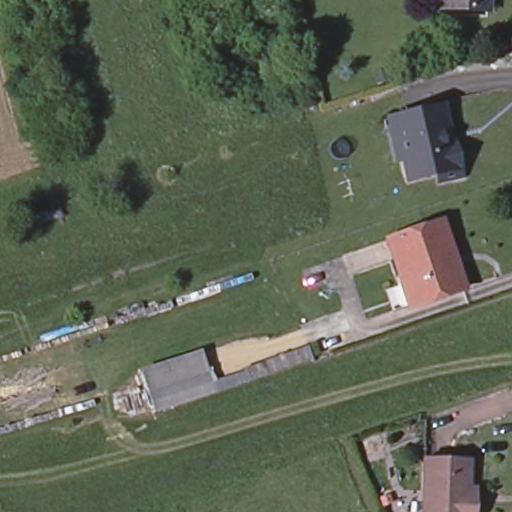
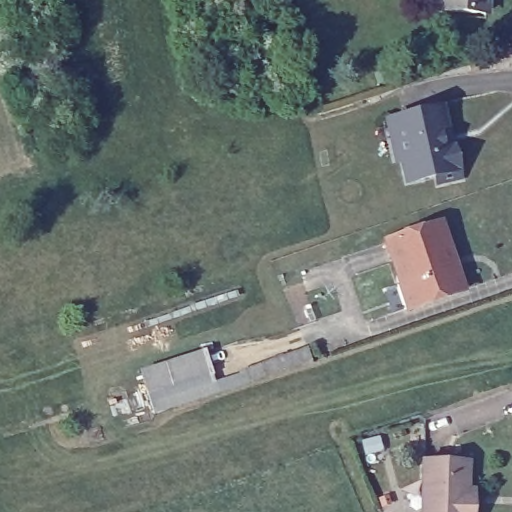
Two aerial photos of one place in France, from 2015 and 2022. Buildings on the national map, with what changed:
unchanged [(436,10),(437,0),(483,0),(482,13),(436,10)]
unchanged [(405,171),(398,145),(392,115),(439,104),(444,127),(441,128),(441,130),(445,146),(453,144),(455,154),(460,174),(437,179),(435,171),(406,179),(405,171)]
unchanged [(397,285),(386,252),(381,239),(435,220),(439,234),(450,269),(456,288),(414,302),(403,305),(397,287),(397,285)]
unchanged [(314,362),(155,413),(141,368),(199,350),(208,379),(309,345),(314,362)]
unchanged [(472,499),(472,512),(419,512),(421,456),(466,457),(465,485),(472,486),(472,499)]

